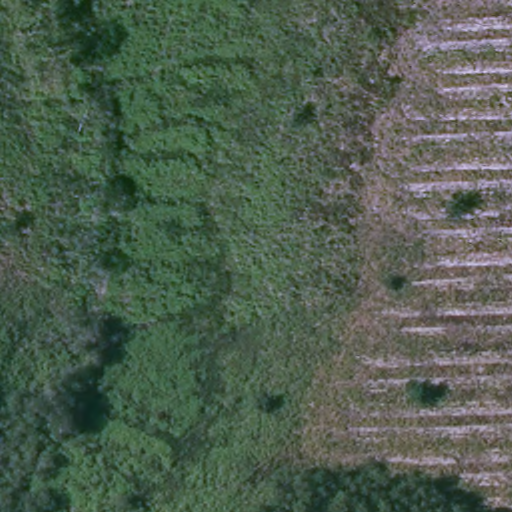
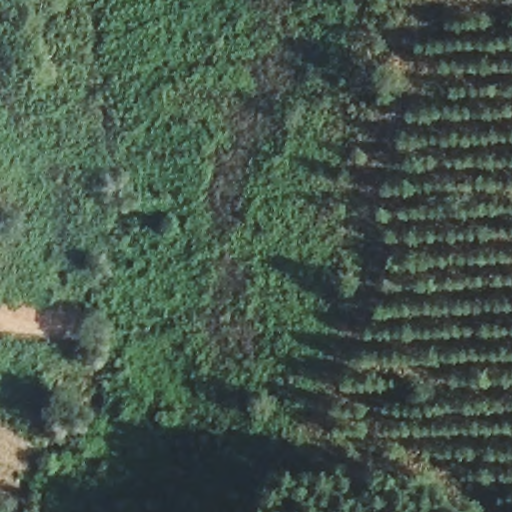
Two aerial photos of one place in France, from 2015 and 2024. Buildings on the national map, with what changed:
[]

